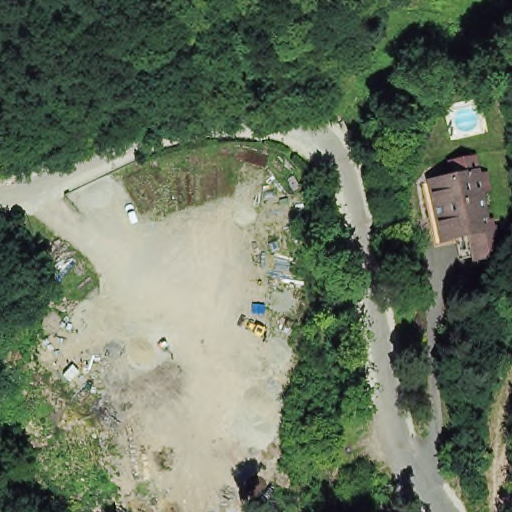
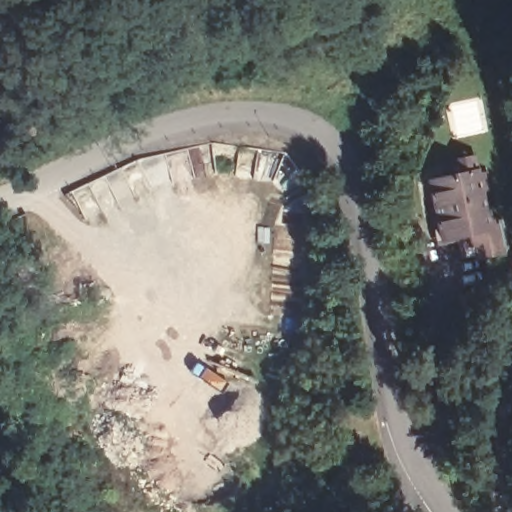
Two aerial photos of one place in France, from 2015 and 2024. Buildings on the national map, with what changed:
unchanged [(490,223),(498,222),(506,248),(476,255),(470,230),(440,236),(427,180),(477,168),(490,223)]

